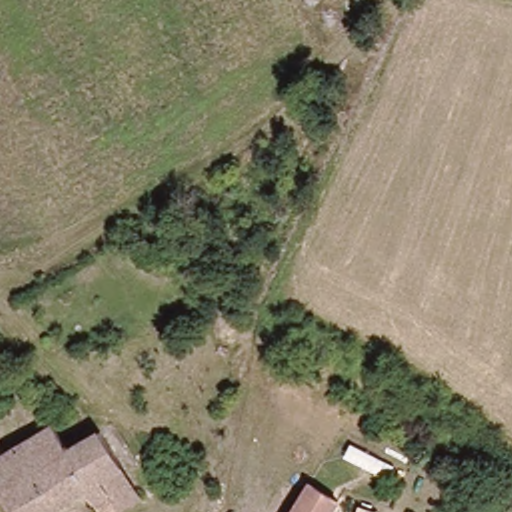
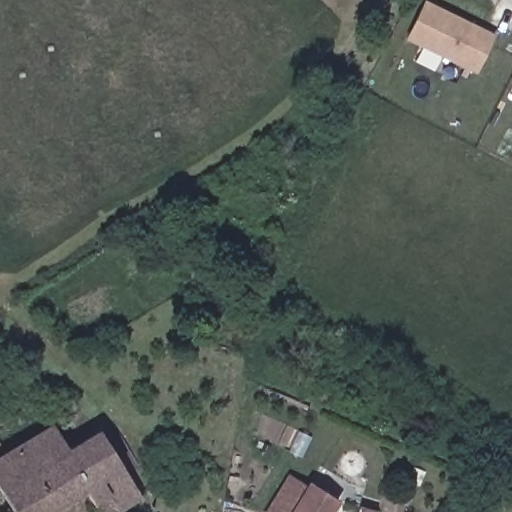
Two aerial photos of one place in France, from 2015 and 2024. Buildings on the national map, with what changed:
new [(477,75),(405,39),(425,0),(496,35),(477,75)]
unchanged [(117,510),(113,512),(96,512),(85,492),(50,512),(11,512),(0,492),(0,441),(6,452),(53,425),(66,448),(100,428),(124,469),(139,497),(117,510)]
unchanged [(340,506),(337,512),(291,512),(314,478),(340,506)]
unchanged [(358,512),(345,512),(346,508),(358,512)]

